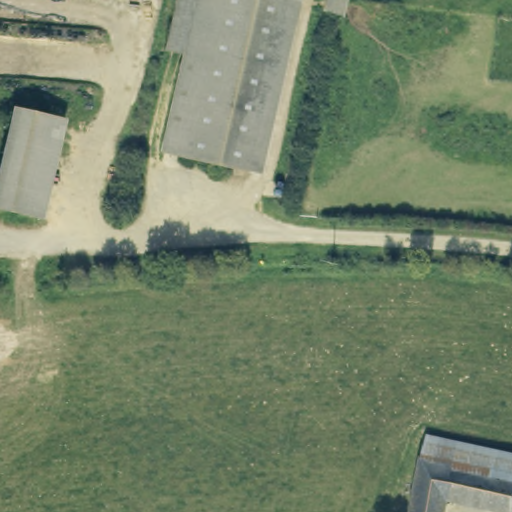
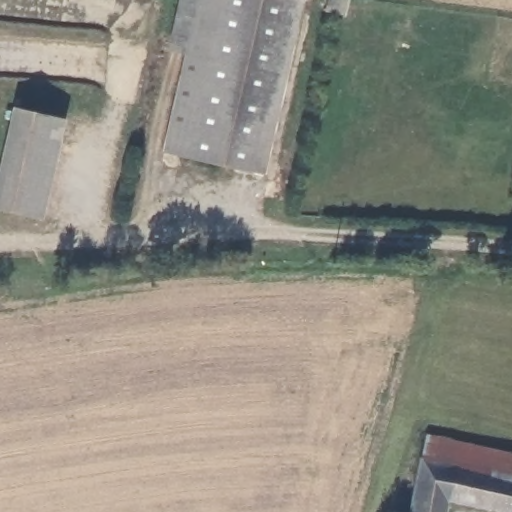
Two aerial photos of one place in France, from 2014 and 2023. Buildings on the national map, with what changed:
unchanged [(266,175),(179,155),(201,57),(183,53),(195,0),(306,0),(266,175)]
unchanged [(60,120),(38,219),(0,210),(0,203),(21,111),(60,120)]
unchanged [(446,512),(411,512),(415,493),(430,436),(512,456),(512,512),(499,512),(448,500),(446,512)]

